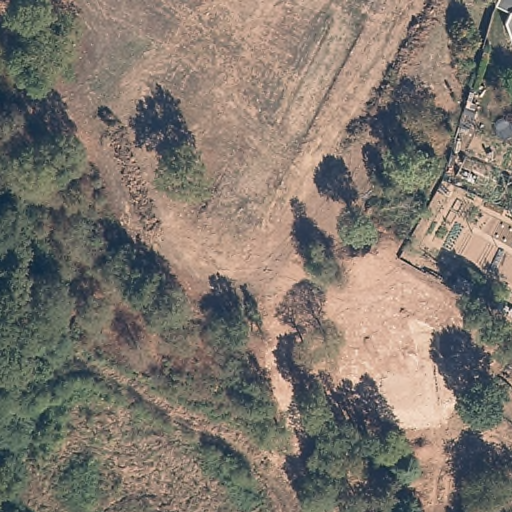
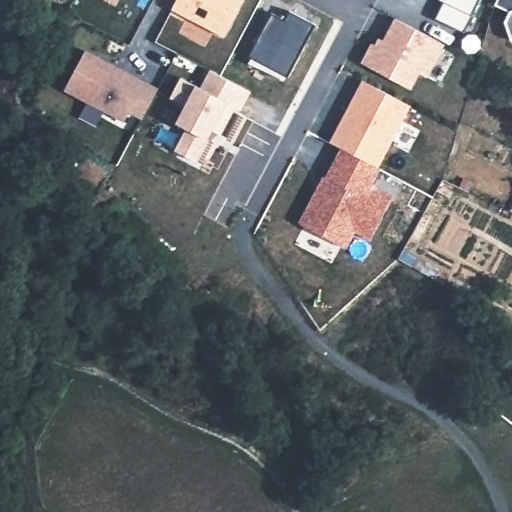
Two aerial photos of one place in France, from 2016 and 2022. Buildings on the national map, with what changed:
new [(241,0),(224,35),(171,10),(176,0),(241,0)]
new [(438,0),(480,0),(464,33),(435,19),(443,2),(438,0)]
unchanged [(505,25),(510,12),(495,5),(498,0),(512,0),(512,39),(505,25)]
new [(286,81),(246,61),(269,17),(282,24),(290,11),(316,25),(286,81)]
new [(427,77),(419,72),(410,89),(361,63),(372,44),(375,45),(379,39),(387,42),(391,35),(387,33),(395,19),(444,44),(427,77)]
new [(85,51),(120,70),(119,72),(127,76),(131,75),(157,89),(142,118),(129,111),(125,120),(65,90),(85,51)]
new [(190,82),(199,65),(240,86),(250,92),(241,110),(236,107),(221,135),(212,130),(196,161),(175,150),(186,129),(176,123),(185,105),(170,97),(181,77),(190,82)]
new [(341,148),(328,142),(361,80),(411,107),(380,169),(341,148)]
demolished [(352,122),(344,116),(350,105),(360,111),(352,122)]
new [(324,175),(326,176),(326,177),(341,148),(380,169),(371,185),(392,196),(370,239),(355,231),(346,248),(298,223),(312,197),(324,175)]

